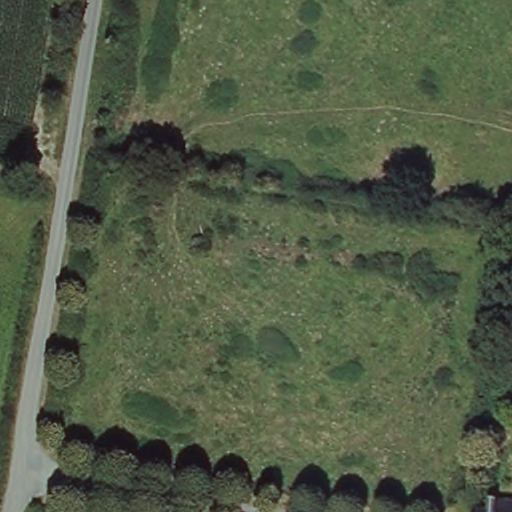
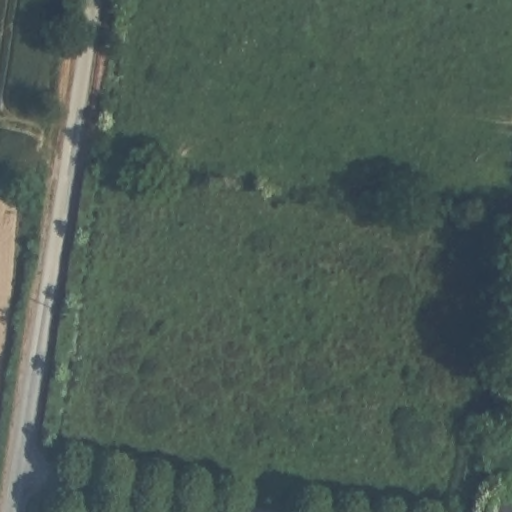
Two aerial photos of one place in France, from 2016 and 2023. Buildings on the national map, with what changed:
unchanged [(475,500),(476,490),(512,493),(512,512),(460,512),(461,499),(475,500)]

